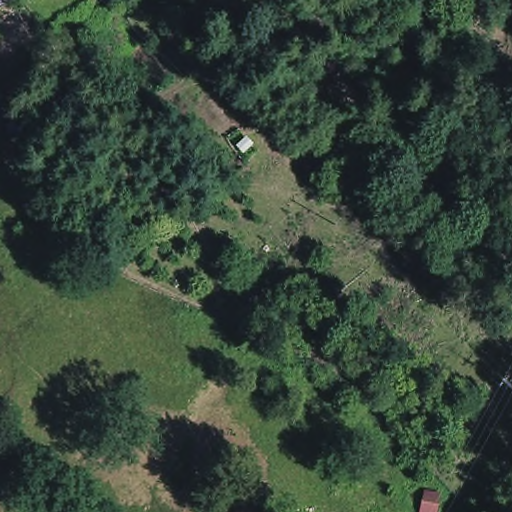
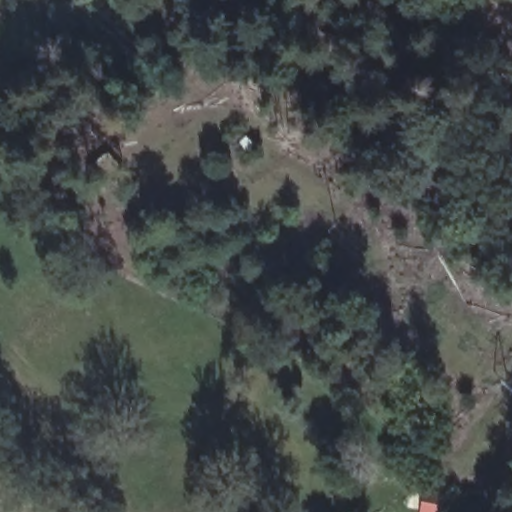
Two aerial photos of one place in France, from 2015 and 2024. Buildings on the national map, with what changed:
[]

